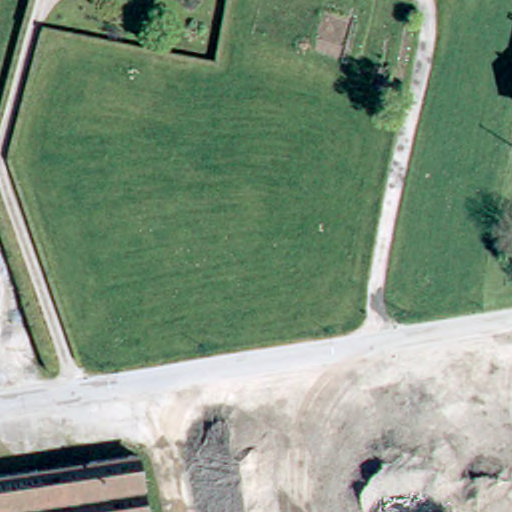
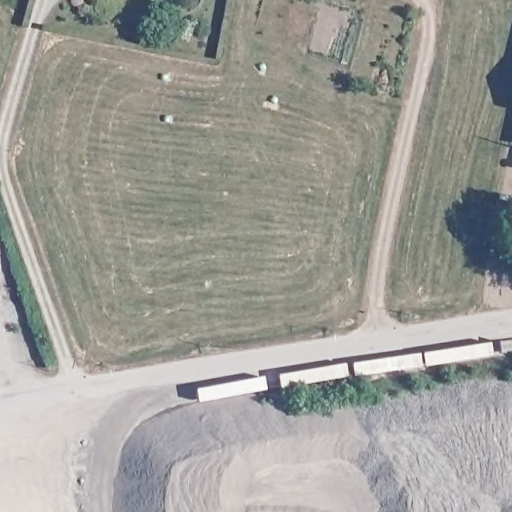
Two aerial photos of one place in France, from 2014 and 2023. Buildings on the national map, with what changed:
demolished [(140,459),(149,512),(0,512),(0,481),(140,459)]

